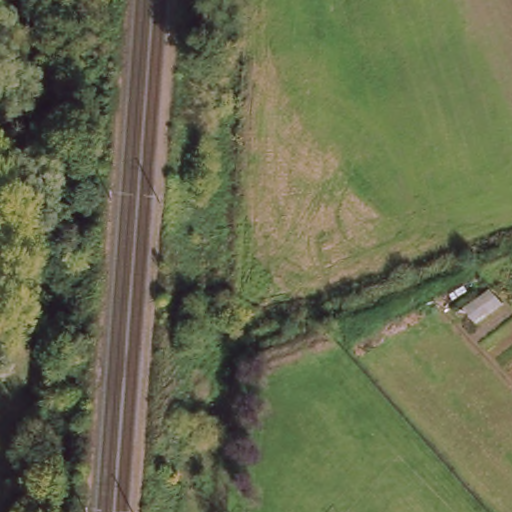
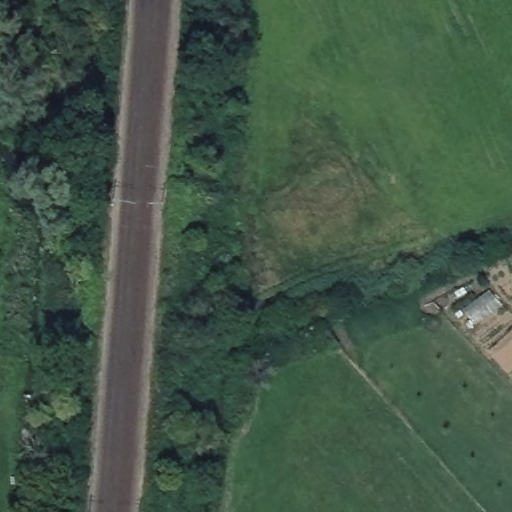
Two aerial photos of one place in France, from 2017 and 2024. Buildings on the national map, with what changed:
unchanged [(469,284),(473,291),(456,299),(453,293),(469,284)]

